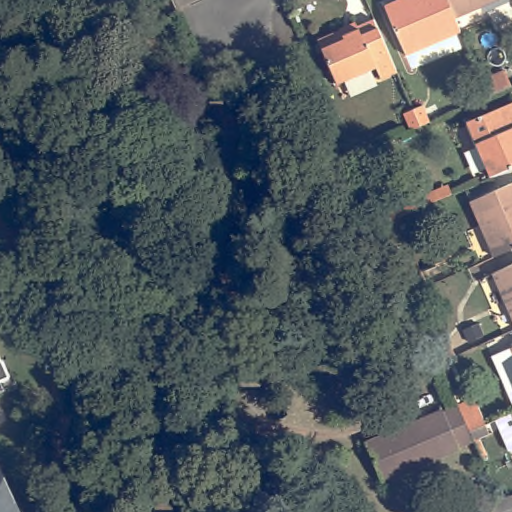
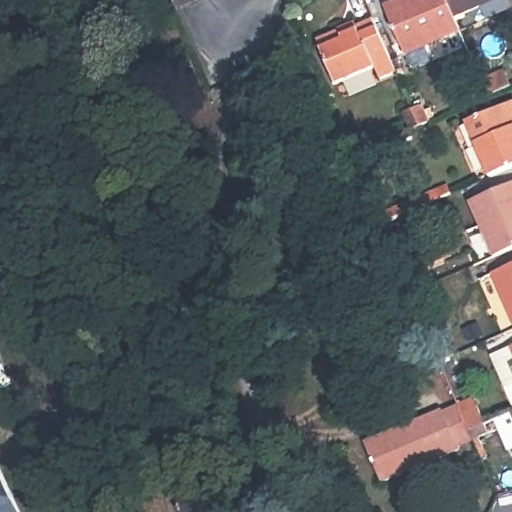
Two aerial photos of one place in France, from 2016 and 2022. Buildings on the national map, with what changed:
unchanged [(459,17),(465,31),(411,55),(392,11),(389,6),(403,0),(452,0),(459,17)]
unchanged [(459,17),(452,0),(498,0),(459,17)]
unchanged [(397,67),(381,75),(376,62),(336,80),(318,38),(343,27),(356,21),(374,14),(397,67)]
unchanged [(488,100),(482,86),(505,76),(511,90),(488,100)]
unchanged [(403,113),(413,109),(422,105),(429,121),(420,125),(410,129),(403,113)]
unchanged [(512,108),(512,172),(490,182),(467,127),(512,108)]
unchanged [(510,250),(494,256),(470,202),(512,184),(512,249),(510,250)]
unchanged [(381,225),(377,215),(393,208),(397,217),(381,225)]
unchanged [(493,273),(512,265),(512,318),(493,273)]
unchanged [(404,280),(401,271),(409,268),(412,276),(422,272),(428,285),(410,293),(404,280)]
unchanged [(440,362),(434,350),(450,343),(455,355),(440,362)]
unchanged [(488,355),(512,345),(512,410),(488,355)]
unchanged [(0,390),(0,361),(11,385),(0,390)]
unchanged [(460,450),(382,483),(365,442),(383,435),(403,426),(443,409),(444,411),(458,405),(474,399),(478,407),(486,425),(490,433),(474,441),(459,447),(460,450)]
unchanged [(508,412),(512,410),(512,423),(508,412)]
unchanged [(0,512),(0,479),(15,512),(0,512)]
unchanged [(206,512),(196,512),(205,510),(206,512)]

